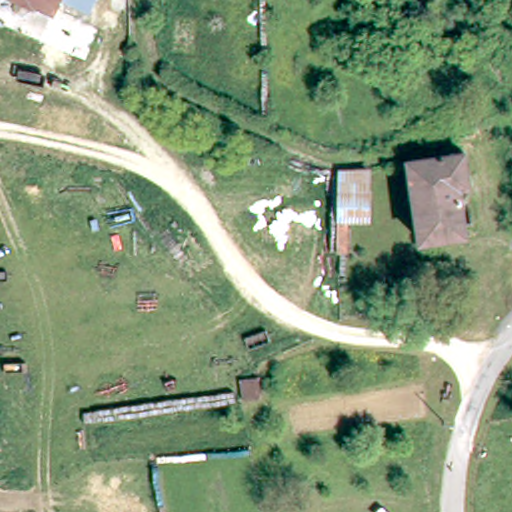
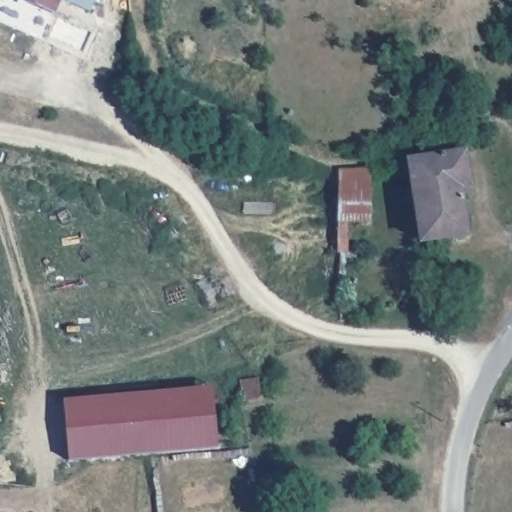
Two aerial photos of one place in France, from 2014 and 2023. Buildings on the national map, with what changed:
unchanged [(47,10),(25,0),(51,0),(47,10)]
unchanged [(71,0),(89,0),(86,6),(71,0)]
unchanged [(476,128),(489,126),(493,148),(479,150),(476,128)]
unchanged [(454,140),(452,131),(472,128),(473,137),(454,140)]
unchanged [(421,239),(407,157),(464,148),(469,181),(458,183),(466,232),(421,239)]
unchanged [(337,252),(337,220),(337,168),(356,168),(356,220),(349,220),(349,252),(337,252)]
new [(58,398),(207,386),(212,446),(65,458),(58,398)]

